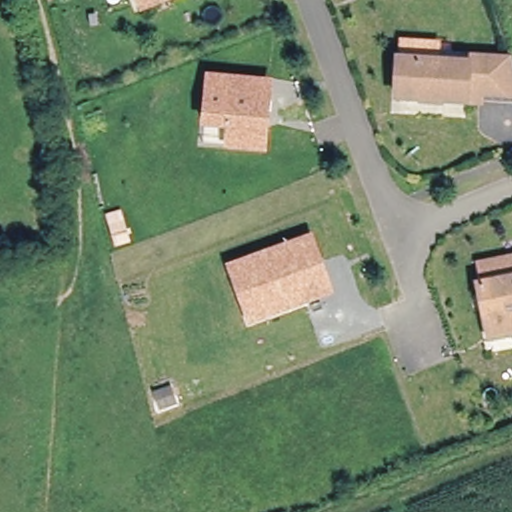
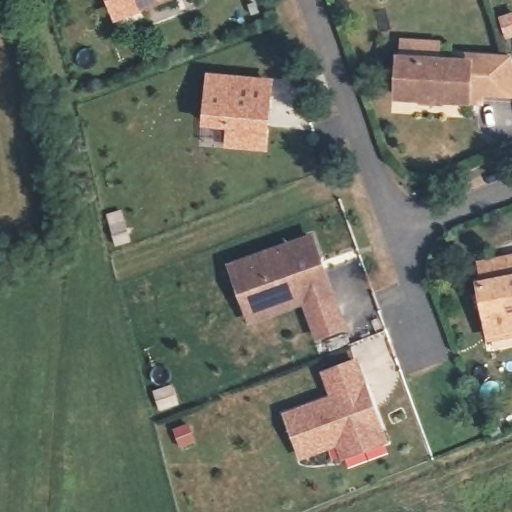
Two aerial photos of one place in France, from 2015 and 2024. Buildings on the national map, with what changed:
unchanged [(168,0),(140,10),(137,0),(168,0)]
unchanged [(395,91),(397,54),(467,59),(468,53),(512,55),(512,89),(480,88),(480,96),(466,96),(395,91)]
unchanged [(271,77),(266,151),(223,148),(225,128),(199,126),(205,71),(271,77)]
unchanged [(312,233),(334,295),(247,326),(226,263),(312,233)]
unchanged [(490,286),(487,267),(512,262),(512,336),(505,337),(494,339),(490,321),(485,287),(490,286)]
new [(348,330),(313,342),(301,307),(334,295),(348,330)]
new [(357,357),(388,443),(341,461),(337,448),(300,460),(283,412),(328,395),(320,372),(357,357)]

